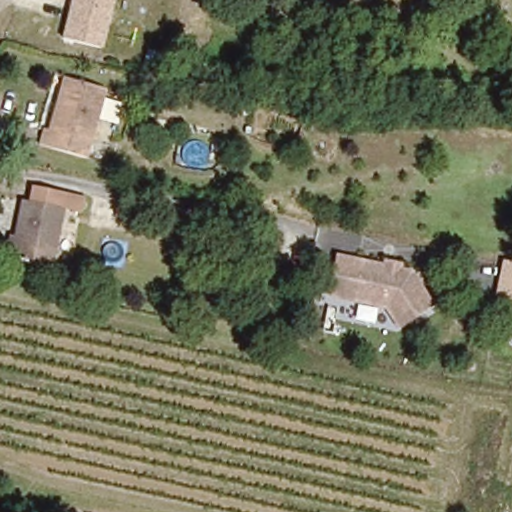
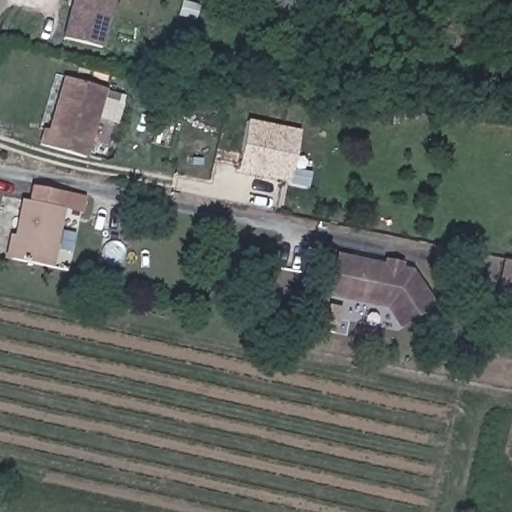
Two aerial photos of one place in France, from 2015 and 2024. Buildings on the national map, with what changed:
unchanged [(115,0),(102,50),(60,39),(70,0),(115,0)]
unchanged [(35,127),(42,127),(53,76),(101,89),(84,157),(32,144),(35,127)]
new [(235,169),(245,119),(298,130),(288,180),(235,169)]
unchanged [(50,266),(9,259),(18,198),(28,199),(32,184),(63,191),(50,266)]
unchanged [(436,306),(400,331),(381,305),(348,301),(329,297),(335,255),(355,259),(410,267),(436,306)]
unchanged [(501,264),(512,266),(512,302),(495,299),(501,264)]

